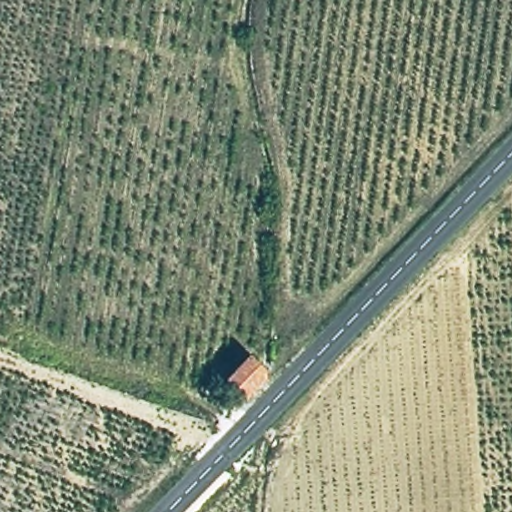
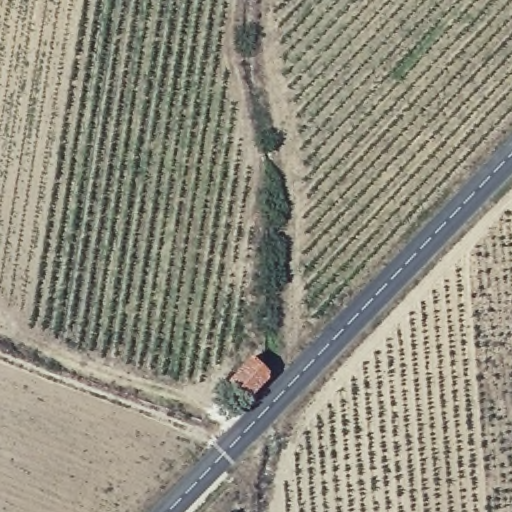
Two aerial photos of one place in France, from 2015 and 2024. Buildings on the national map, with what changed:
unchanged [(267,374),(246,398),(227,384),(249,358),(267,374)]

